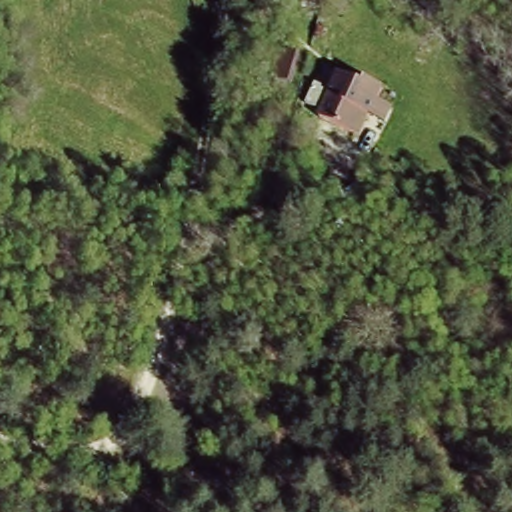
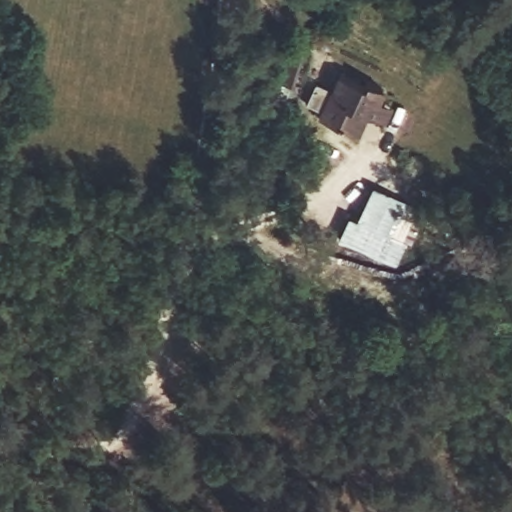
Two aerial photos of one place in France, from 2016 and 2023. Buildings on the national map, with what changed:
unchanged [(298,91),(266,80),(273,47),(306,60),(298,91)]
unchanged [(330,95),(339,73),(361,82),(362,80),(386,89),(380,102),(392,107),(385,124),(370,117),(360,136),(318,117),(330,95)]
new [(409,246),(403,242),(393,263),(335,236),(343,212),(356,217),(373,185),(423,210),(409,246)]

